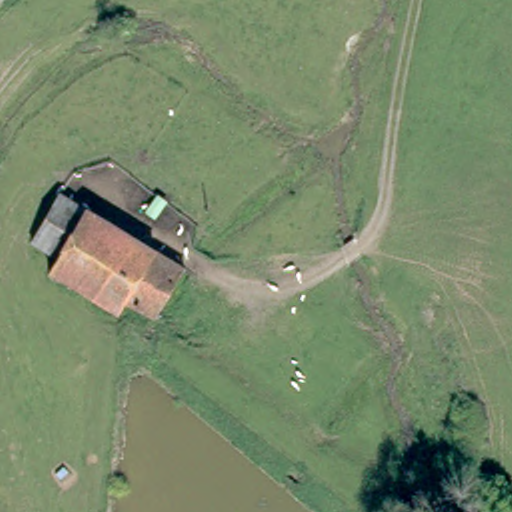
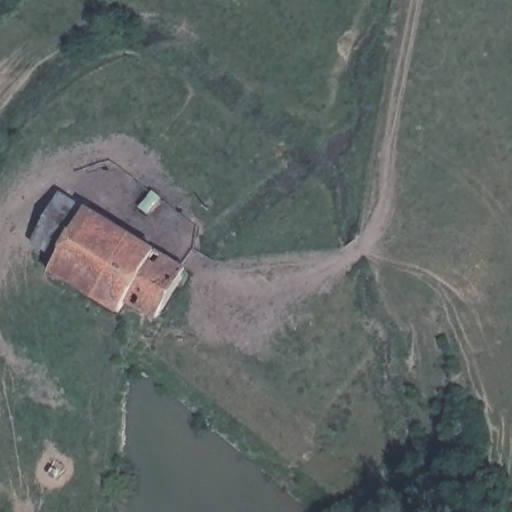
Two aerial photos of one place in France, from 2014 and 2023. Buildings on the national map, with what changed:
unchanged [(153,318),(127,301),(119,313),(50,270),(58,257),(32,241),(63,193),(184,268),(153,318)]

